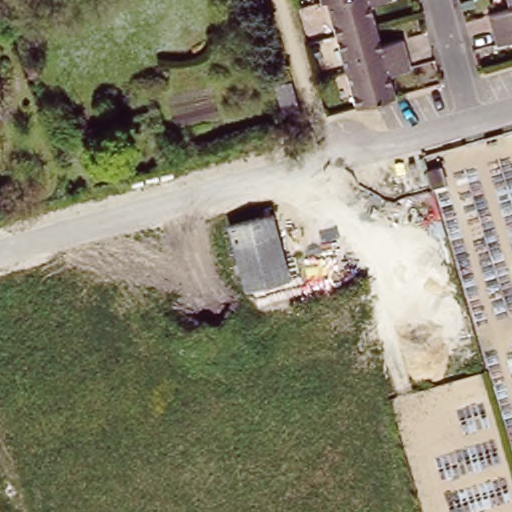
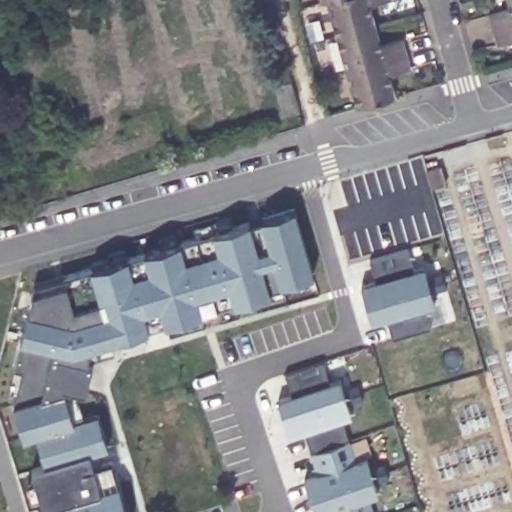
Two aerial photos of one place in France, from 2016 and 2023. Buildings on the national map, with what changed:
unchanged [(321,0),(324,0),(321,1),(321,0)]
unchanged [(376,25),(365,28),(336,35),(326,0),(388,0),(371,5),(376,25)]
unchanged [(490,15),(511,10),(509,0),(512,0),(512,25),(494,30),(490,15)]
unchanged [(381,45),(403,40),(407,55),(347,71),(336,35),(365,28),(376,25),(381,45)]
unchanged [(494,30),(512,25),(512,41),(498,45),(494,30)]
unchanged [(395,96),(393,96),(356,106),(347,71),(407,55),(411,70),(390,76),(395,96)]
unchanged [(283,116),(274,86),(291,81),(299,111),(283,116)]
unchanged [(432,181),(426,162),(442,157),(447,176),(432,181)]
new [(286,283),(286,285),(271,290),(272,293),(235,304),(167,325),(153,329),(120,341),(119,338),(94,347),(89,361),(94,362),(87,393),(81,392),(86,417),(101,413),(112,449),(105,451),(108,463),(115,461),(130,512),(37,512),(44,510),(42,499),(32,501),(29,487),(35,485),(30,469),(45,464),(38,435),(23,439),(12,404),(18,402),(24,371),(16,368),(24,342),(18,340),(25,311),(28,311),(32,291),(67,281),(65,276),(91,269),(90,267),(295,208),(314,274),(286,283)]
demolished [(245,289),(228,226),(270,215),(287,278),(245,289)]
new [(432,292),(438,304),(427,308),(432,327),(394,339),(389,317),(372,323),(361,285),(378,279),(372,259),(412,248),(418,267),(426,266),(427,276),(444,273),(448,287),(432,292)]
new [(333,509),(325,512),(315,512),(303,478),(319,472),(307,432),(290,437),(278,400),(296,394),(288,374),(326,363),(332,380),(340,378),(353,417),(343,420),(360,459),(366,456),(370,471),(386,464),(391,479),(377,485),(381,495),(373,498),(377,512),(334,512),(333,509)]

